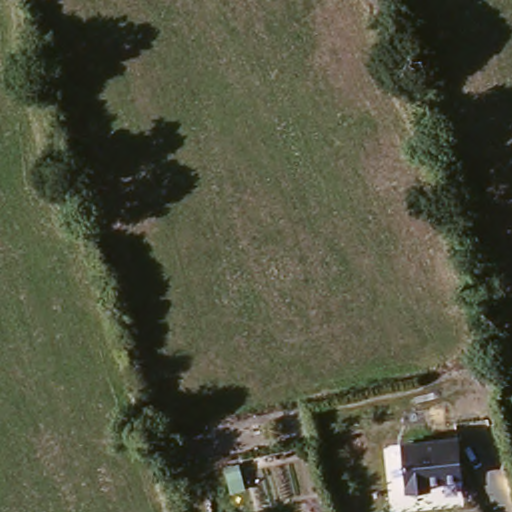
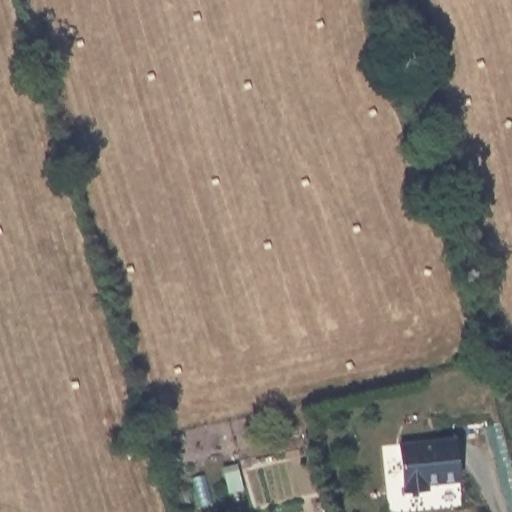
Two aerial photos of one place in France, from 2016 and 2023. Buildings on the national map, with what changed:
unchanged [(460,434),(461,477),(430,477),(430,485),(406,485),(407,437),(460,434)]

